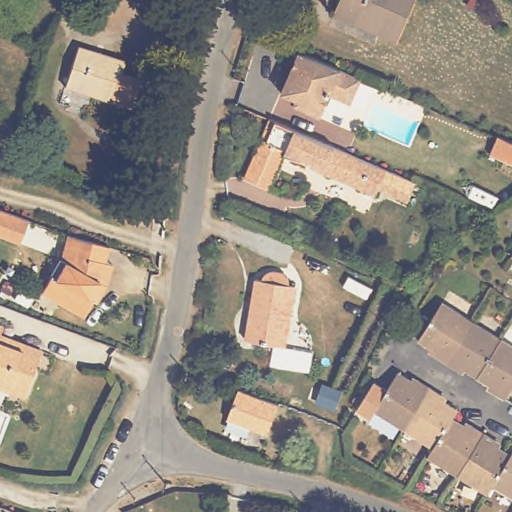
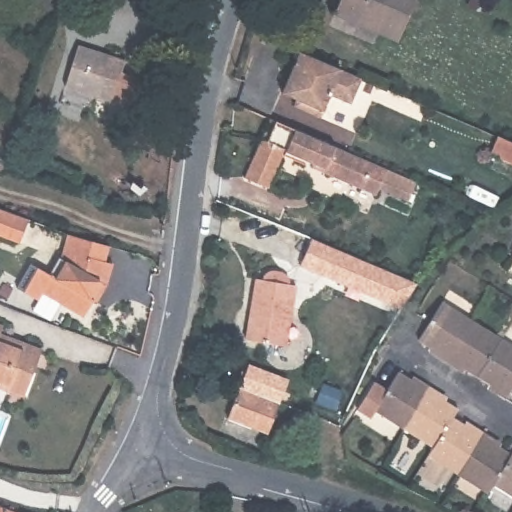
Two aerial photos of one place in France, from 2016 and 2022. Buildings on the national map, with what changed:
unchanged [(393,40),(377,34),(380,28),(354,16),(351,22),(331,13),(337,0),(411,0),(393,40)]
unchanged [(137,78),(128,106),(60,85),(74,45),(121,60),(119,72),(137,78)]
unchanged [(301,101),(286,95),(303,54),(340,69),(362,77),(365,79),(355,105),(334,96),(325,119),(303,110),(298,108),(301,101)]
unchanged [(381,185),(378,194),(325,171),(315,166),(316,162),(310,159),(307,164),(286,155),(271,189),(247,178),(272,119),(272,118),(389,167),(390,168),(419,180),(411,199),(381,185)]
unchanged [(484,150),(491,131),(507,137),(512,139),(512,161),(484,150)]
unchanged [(0,207),(26,215),(16,240),(0,234),(0,207)]
unchanged [(40,293),(60,259),(63,247),(67,230),(87,236),(108,243),(104,259),(112,261),(106,281),(95,302),(92,301),(82,317),(40,293)]
new [(310,236),(416,281),(402,307),(297,265),(310,236)]
unchanged [(299,277),(290,340),(249,333),(259,270),(265,271),(266,268),(267,267),(269,265),(271,265),(273,263),(275,263),(279,263),(281,263),(284,265),(286,265),(288,266),(289,268),(290,270),(291,271),(292,273),(292,276),(299,277)]
unchanged [(417,338),(441,301),(512,348),(512,384),(502,398),(490,390),(491,387),(458,365),(456,368),(432,352),(433,350),(417,338)]
unchanged [(0,331),(0,326),(1,327),(0,331)]
unchanged [(40,351),(24,396),(6,390),(0,388),(0,336),(24,345),(40,351)]
unchanged [(396,371),(412,382),(415,378),(439,395),(437,397),(455,409),(450,417),(465,428),(467,424),(493,441),(491,444),(507,455),(512,449),(512,500),(488,485),(483,492),(425,455),(430,447),(372,408),(367,416),(354,407),(371,381),(383,389),(396,371)]
unchanged [(266,430),(227,416),(238,385),(278,400),(266,430)]
unchanged [(15,512),(0,512),(0,506),(3,507),(15,512)]

